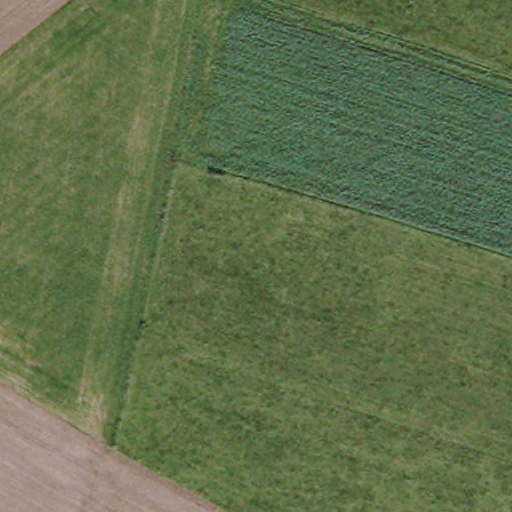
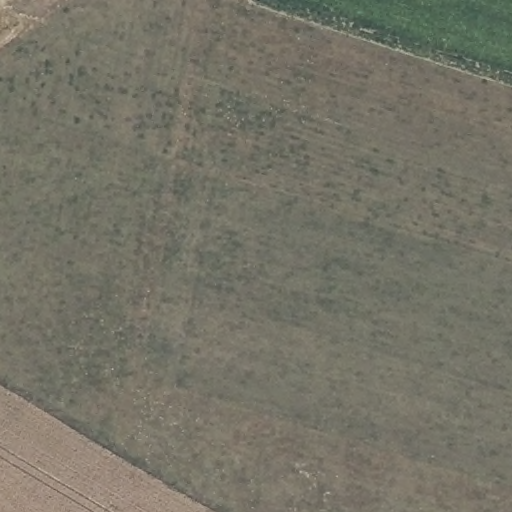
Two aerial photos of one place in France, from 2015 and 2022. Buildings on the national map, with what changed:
[]

